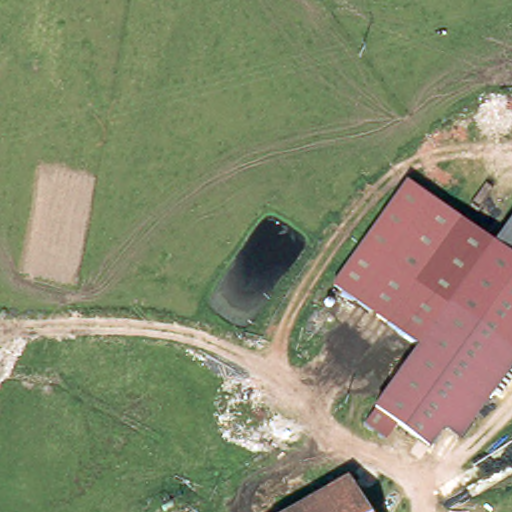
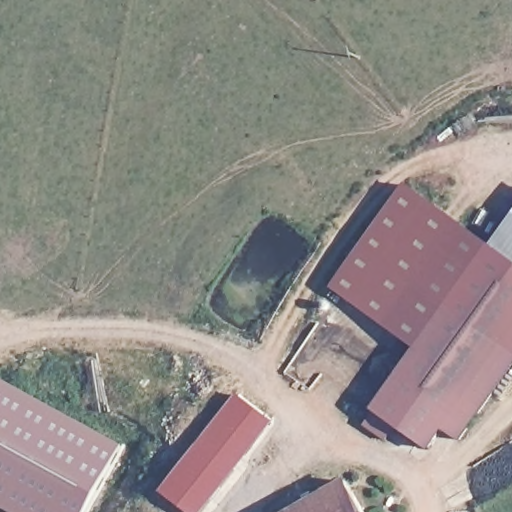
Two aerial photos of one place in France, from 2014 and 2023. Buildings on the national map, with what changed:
unchanged [(378,411),(419,348),(330,291),(399,182),(485,237),(512,255),(512,363),(465,437),(448,427),(435,447),(400,425),(390,441),(368,427),(378,411)]
unchanged [(512,195),(512,210),(505,206),(512,195)]
unchanged [(505,206),(512,210),(512,255),(485,237),(505,206)]
new [(84,512),(11,512),(0,506),(0,378),(121,443),(84,512)]
unchanged [(294,512),(342,483),(361,512),(294,512)]

